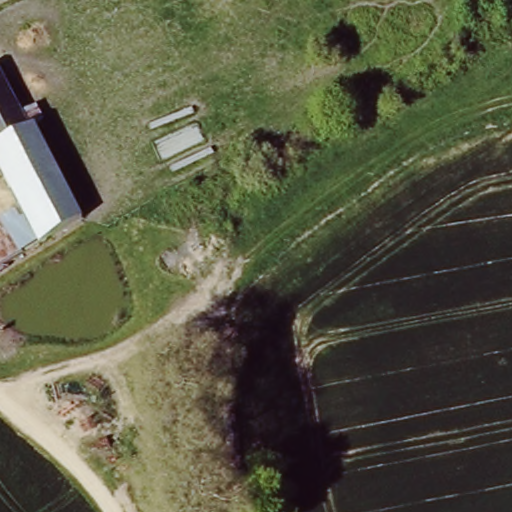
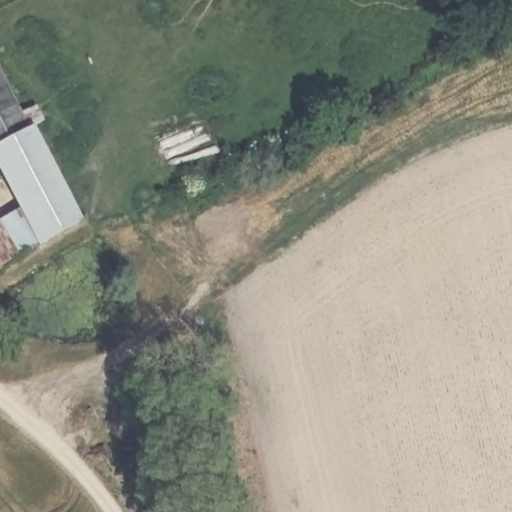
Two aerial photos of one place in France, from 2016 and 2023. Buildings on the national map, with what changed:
unchanged [(0,216),(15,209),(0,178),(0,62),(3,62),(35,119),(84,217),(0,267),(0,216)]

